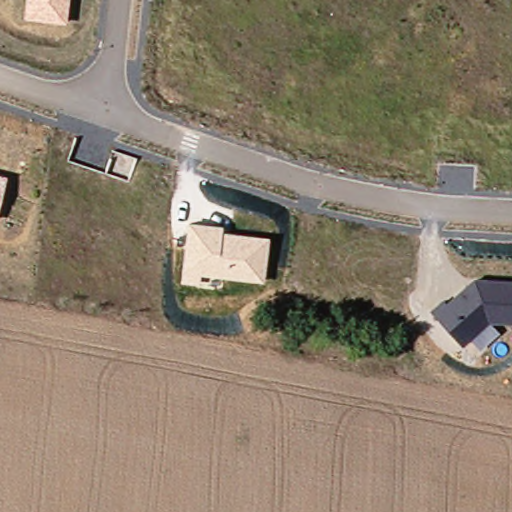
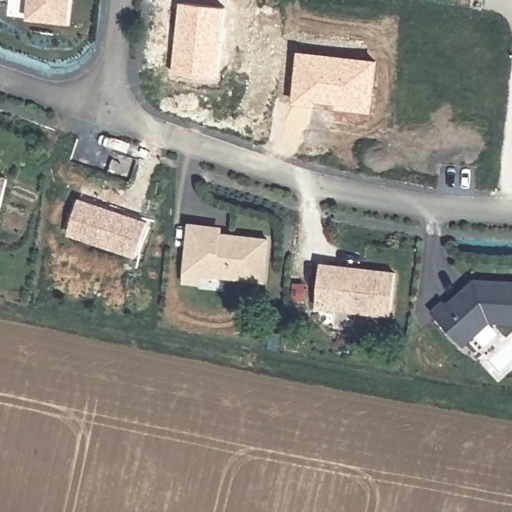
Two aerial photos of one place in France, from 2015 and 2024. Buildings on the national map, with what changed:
unchanged [(67,25),(25,19),(27,0),(69,0),(67,25)]
new [(183,1),(228,7),(219,77),(176,71),(183,1)]
new [(337,107),(337,102),(315,100),(315,105),(294,102),(299,50),(379,60),(372,113),(337,107)]
unchanged [(7,176),(0,203),(0,175),(7,176)]
new [(80,197),(149,220),(136,257),(68,235),(80,197)]
unchanged [(223,225),(223,232),(269,238),(265,284),(201,276),(199,286),(180,285),(190,222),(223,225)]
new [(321,266),(394,273),(390,315),(317,309),(321,266)]
unchanged [(447,304),(474,280),(512,280),(512,326),(491,326),(499,333),(482,350),(470,340),(463,347),(430,310),(442,300),(447,304)]

